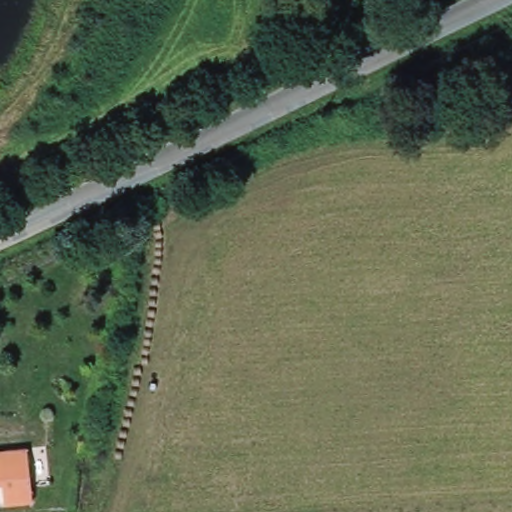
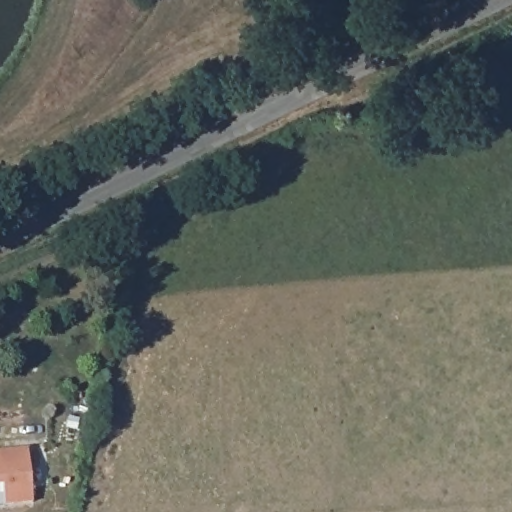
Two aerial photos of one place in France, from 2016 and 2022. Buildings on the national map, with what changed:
unchanged [(29,451),(32,490),(34,505),(5,508),(3,487),(0,487),(0,454),(5,454),(29,451)]

